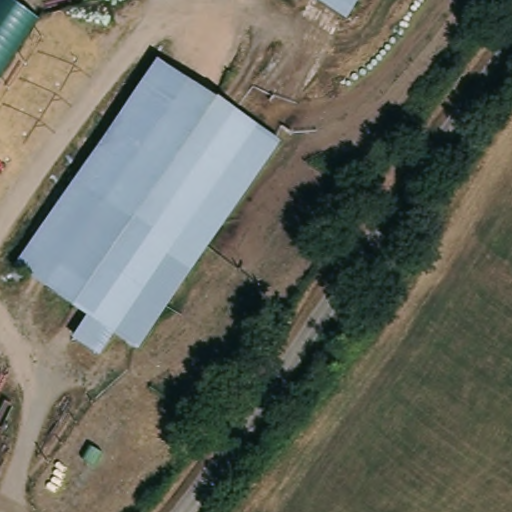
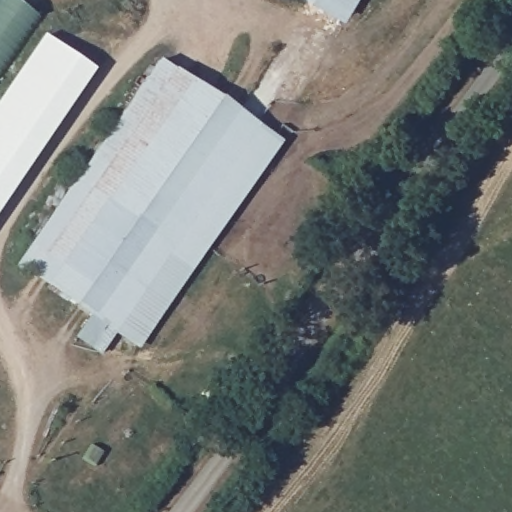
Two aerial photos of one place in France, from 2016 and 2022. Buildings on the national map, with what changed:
unchanged [(10,0),(35,16),(0,68),(0,0),(10,0)]
unchanged [(313,0),(361,0),(344,22),(313,0)]
new [(41,47),(91,81),(0,217),(0,108),(41,47)]
unchanged [(135,352),(19,272),(163,64),(279,145),(135,352)]

